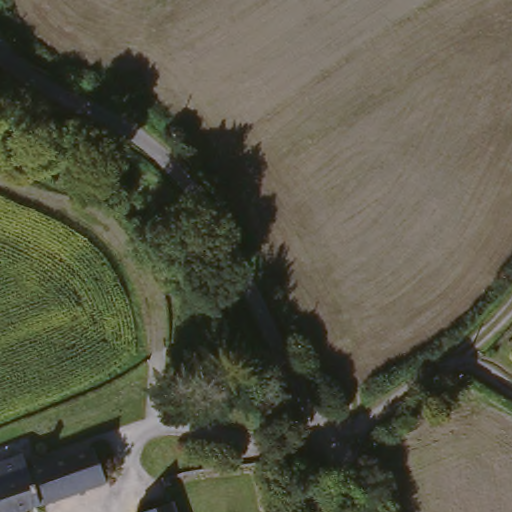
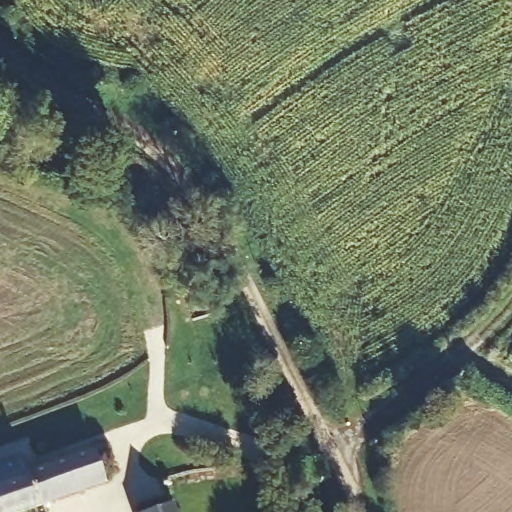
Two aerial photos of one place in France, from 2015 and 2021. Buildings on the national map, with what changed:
unchanged [(40,512),(0,512),(0,466),(16,460),(22,480),(91,453),(103,489),(40,512)]
unchanged [(173,512),(160,512),(172,508),(173,512)]

